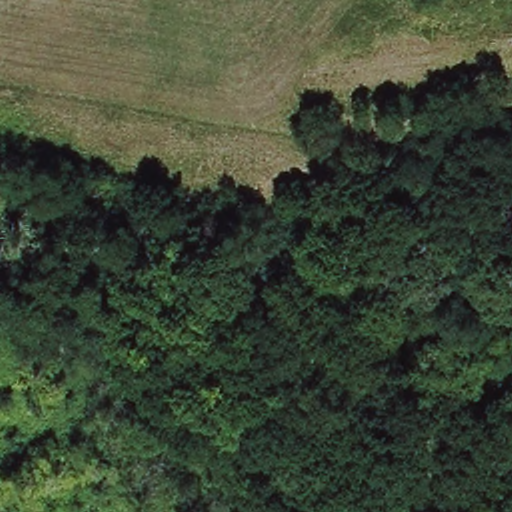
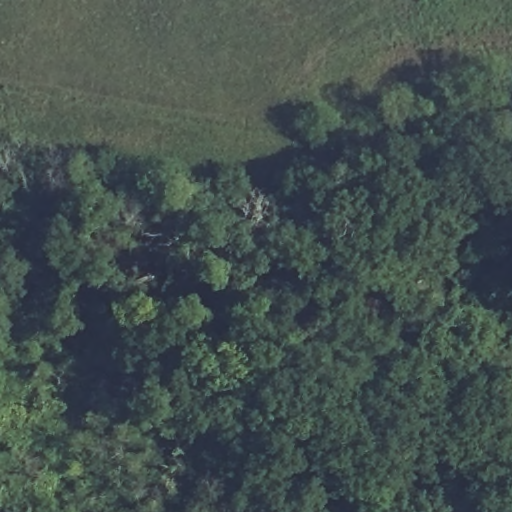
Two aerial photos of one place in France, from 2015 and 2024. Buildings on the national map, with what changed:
[]

